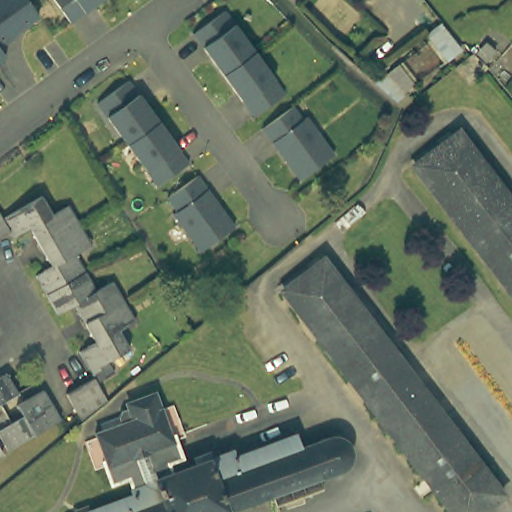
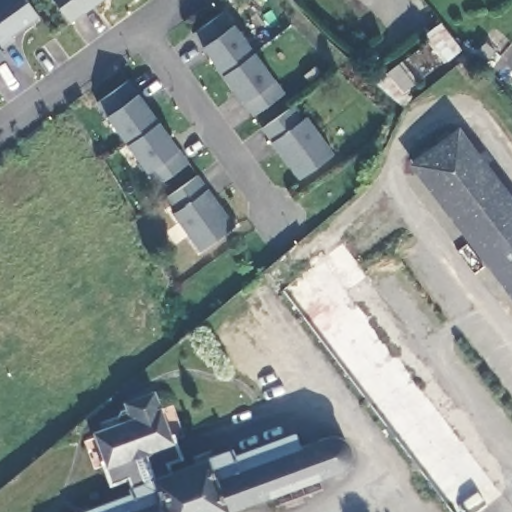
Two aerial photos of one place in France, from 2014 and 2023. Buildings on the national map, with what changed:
unchanged [(6,35),(8,38),(0,44),(0,0),(23,0),(34,15),(6,35)]
unchanged [(51,0),(98,0),(68,22),(51,0)]
unchanged [(284,91),(253,114),(193,34),(223,9),(284,91)]
unchanged [(126,80),(187,162),(155,185),(94,104),(126,80)]
unchanged [(304,118),(308,115),(334,151),(299,177),(262,127),(293,104),(304,118)]
unchanged [(460,130),(512,198),(512,288),(418,163),(460,130)]
unchanged [(175,210),(165,197),(195,175),(234,225),(199,250),(172,214),(175,210)]
demolished [(44,190),(54,210),(71,200),(94,239),(78,248),(99,285),(116,275),(139,313),(121,323),(133,341),(110,355),(117,365),(99,375),(109,392),(84,412),(70,387),(98,371),(84,347),(99,337),(77,299),(60,308),(39,272),(55,262),(32,223),(15,233),(10,224),(0,230),(0,206),(4,214),(44,190)]
unchanged [(463,487),(411,420),(359,351),(298,275),(324,255),(502,486),(479,506),(463,487)]
unchanged [(463,487),(479,506),(472,512),(455,512),(304,312),(284,285),(287,283),(298,275),(359,351),(411,420),(463,487)]
demolished [(43,385),(60,412),(8,445),(3,437),(0,439),(0,361),(22,397),(43,385)]
unchanged [(139,495),(133,478),(115,485),(106,459),(109,458),(100,433),(125,424),(124,419),(128,410),(133,409),(132,406),(134,400),(158,392),(173,435),(178,434),(187,459),(175,464),(178,472),(238,450),(240,456),(301,435),(306,449),(339,437),(340,437),(344,437),(348,438),(351,440),(353,443),(355,446),(356,449),(357,452),(356,456),(355,459),(353,462),(351,465),(347,466),(324,475),(329,487),(282,505),(277,492),(225,512),(88,512),(139,495)]
demolished [(0,450),(0,445),(2,448),(0,450)]

